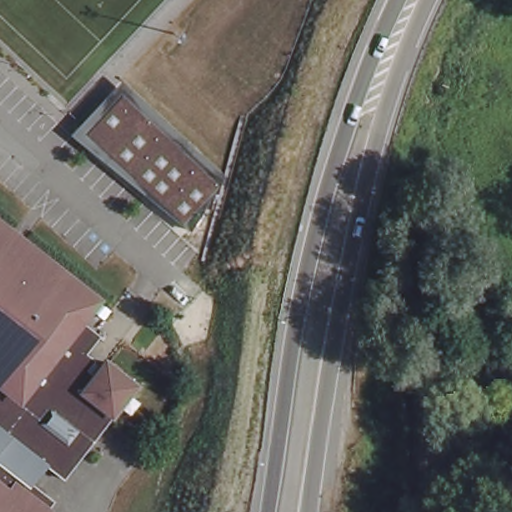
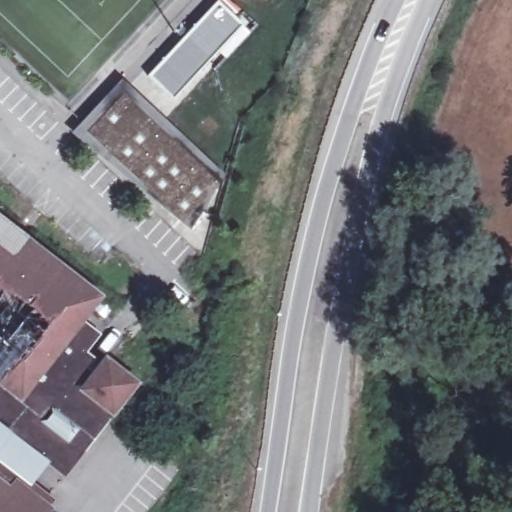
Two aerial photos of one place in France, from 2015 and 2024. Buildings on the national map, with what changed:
new [(218,2),(244,27),(173,102),(148,78),(218,2)]
unchanged [(225,177),(189,232),(76,132),(122,80),(225,177)]
unchanged [(136,381),(128,391),(125,390),(118,399),(120,401),(109,414),(62,475),(41,459),(28,477),(46,490),(38,500),(47,507),(44,512),(0,512),(0,219),(98,296),(80,318),(96,330),(86,342),(83,348),(94,358),(101,364),(105,358),(136,381)]

